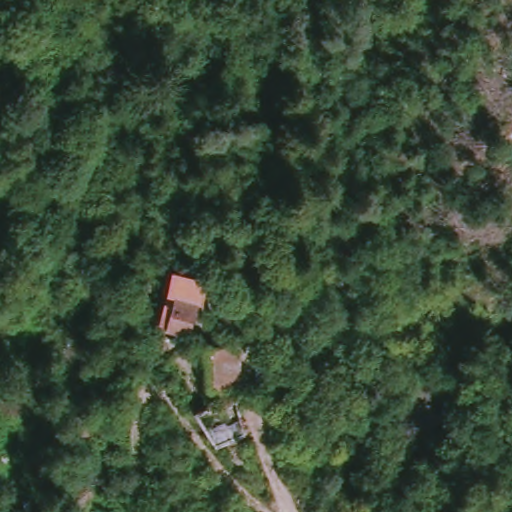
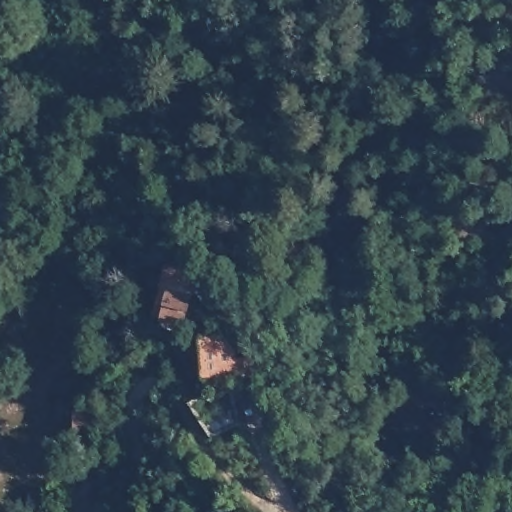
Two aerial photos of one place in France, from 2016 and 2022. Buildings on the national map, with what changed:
unchanged [(178,349),(150,339),(164,283),(196,291),(178,349)]
unchanged [(233,364),(240,367),(243,387),(234,395),(203,397),(199,355),(227,354),(233,364)]

